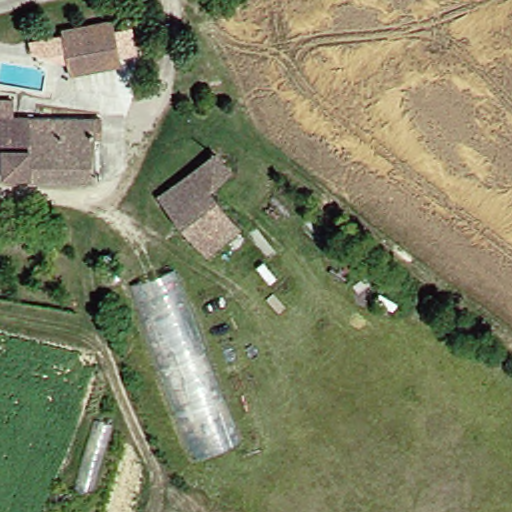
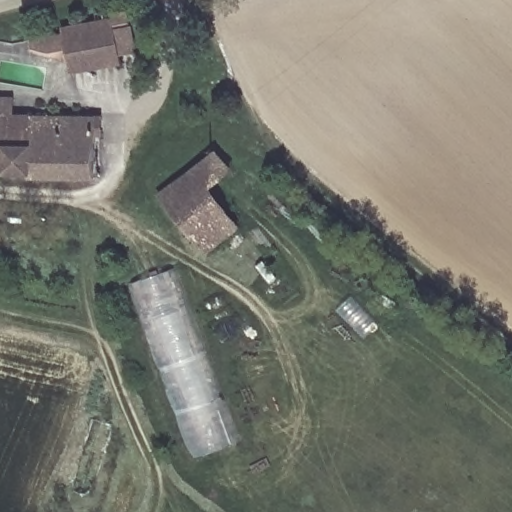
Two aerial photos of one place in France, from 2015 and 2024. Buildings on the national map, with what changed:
unchanged [(115,70),(109,71),(65,77),(59,31),(108,24),(110,43),(115,70)]
unchanged [(10,119),(30,119),(27,183),(0,184),(0,169),(0,99),(11,100),(10,119)]
unchanged [(93,181),(27,183),(30,119),(95,121),(93,181)]
unchanged [(204,250),(155,202),(205,150),(225,167),(198,194),(230,226),(226,230),(204,250)]
unchanged [(198,194),(225,167),(235,156),(250,171),(235,189),(267,222),(246,242),(230,226),(198,194)]
unchanged [(186,457),(124,286),(169,273),(231,442),(186,457)]

